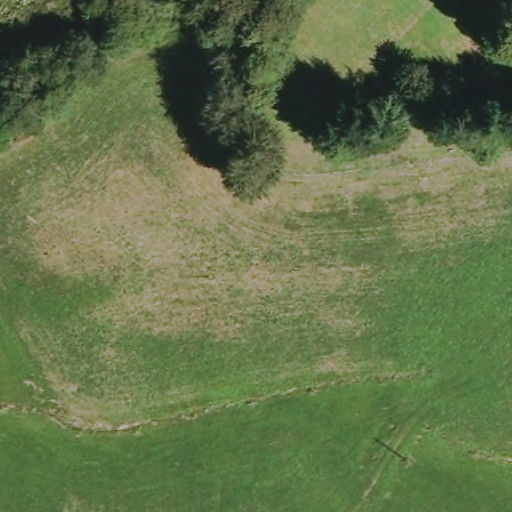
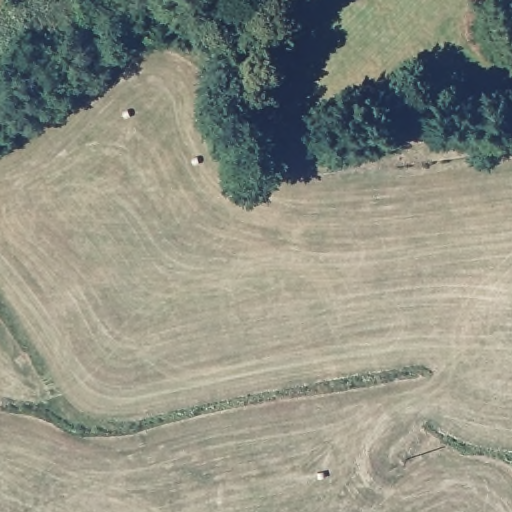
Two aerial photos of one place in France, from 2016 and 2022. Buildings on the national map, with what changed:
[]

